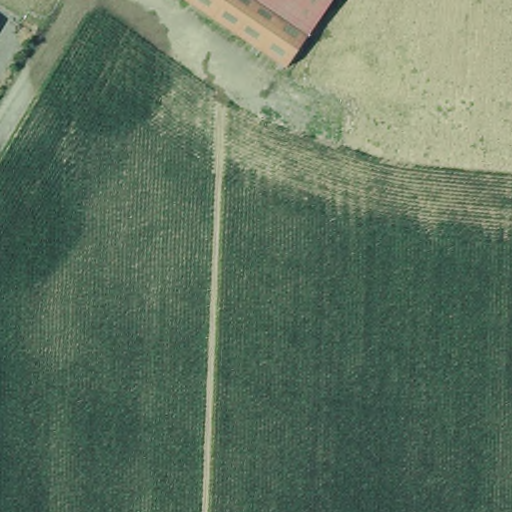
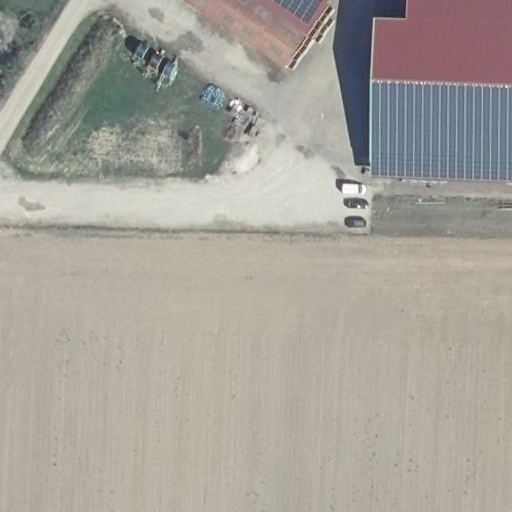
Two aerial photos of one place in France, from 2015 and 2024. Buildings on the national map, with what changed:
unchanged [(170,0),(242,0),(300,40),(277,73),(170,0)]
unchanged [(242,0),(327,0),(300,40),(242,0)]
new [(371,180),(379,21),(410,22),(410,0),(512,0),(512,184),(371,180)]

